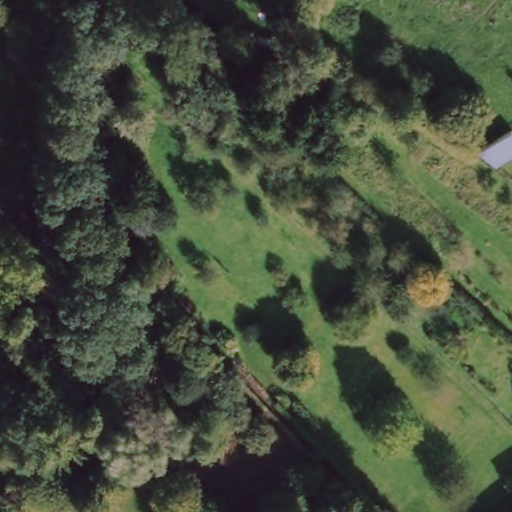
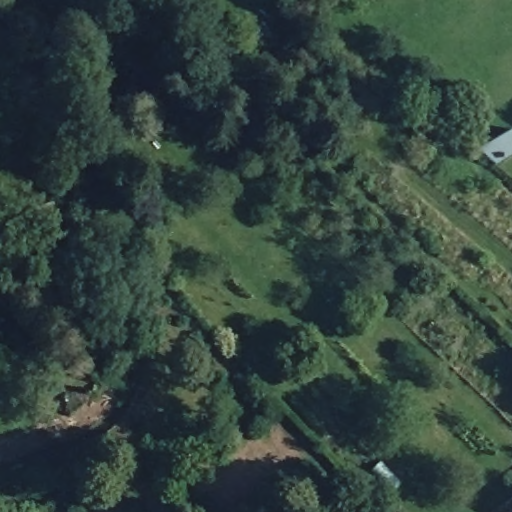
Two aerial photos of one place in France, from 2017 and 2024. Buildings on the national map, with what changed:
unchanged [(512,156),(499,165),(482,150),(512,131),(512,156)]

